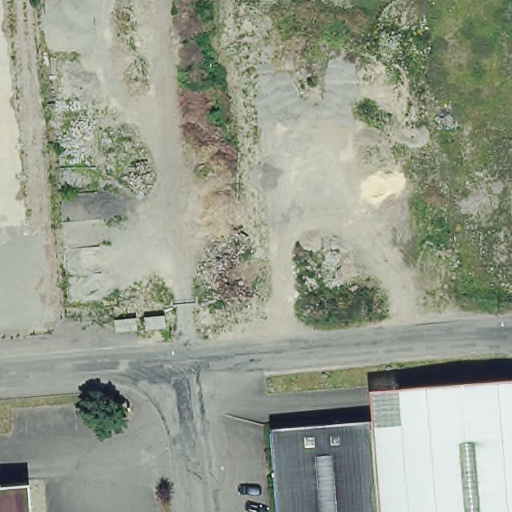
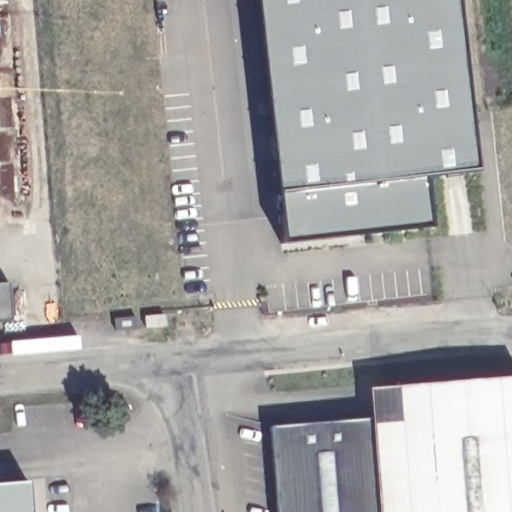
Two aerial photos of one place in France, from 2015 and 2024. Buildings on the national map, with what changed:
new [(474,173),(425,179),(431,228),(281,245),(253,0),(455,0),(474,173)]
new [(0,283),(10,283),(13,321),(0,322),(0,283)]
unchanged [(146,315),(166,314),(166,326),(146,328),(146,315)]
unchanged [(136,329),(116,331),(115,319),(136,317),(136,329)]
unchanged [(370,416),(370,387),(397,385),(512,376),(512,512),(393,512),(386,419),(371,420),(370,416)]
unchanged [(370,416),(371,420),(378,512),(277,512),(270,424),(370,416)]
unchanged [(378,512),(371,420),(386,419),(393,512),(378,512)]
unchanged [(34,512),(0,512),(0,479),(31,476),(34,512)]
demolished [(46,479),(48,493),(38,494),(37,480),(46,479)]

